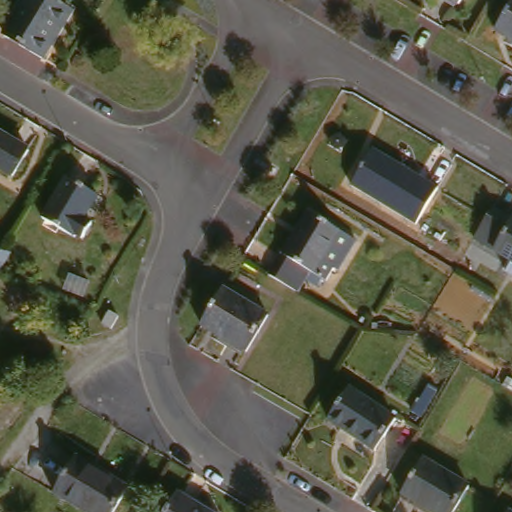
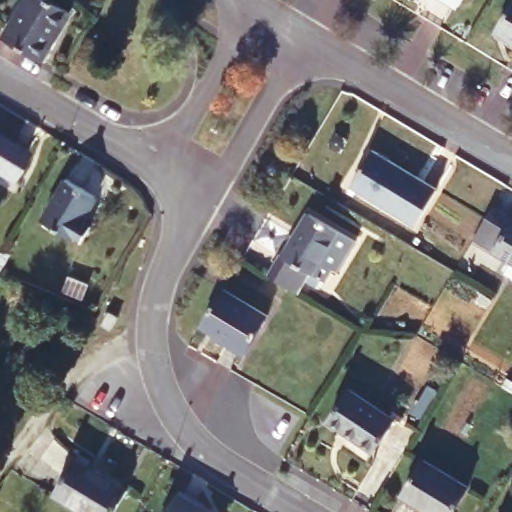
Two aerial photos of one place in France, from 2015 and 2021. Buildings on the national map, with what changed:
unchanged [(32,0),(37,0),(72,20),(45,68),(6,45),(32,0)]
unchanged [(455,7),(444,0),(459,0),(455,7)]
unchanged [(512,17),(512,46),(499,37),(507,25),(512,17)]
unchanged [(31,155),(16,180),(0,170),(0,137),(31,155)]
unchanged [(372,154),(438,191),(415,230),(349,191),(372,154)]
unchanged [(66,183),(97,204),(72,245),(39,222),(66,183)]
unchanged [(494,202),(512,213),(512,258),(475,236),(494,202)]
unchanged [(338,274),(333,271),(326,283),(319,280),(314,287),(302,280),(295,293),(294,292),(270,278),(268,277),(280,256),(282,258),(307,215),(338,234),(356,244),(338,274)]
unchanged [(512,261),(512,276),(505,272),(512,261)]
unchanged [(270,324),(250,360),(200,330),(221,294),(270,324)]
unchanged [(101,307),(112,315),(104,328),(92,321),(101,307)]
unchanged [(348,395),(395,425),(374,457),(328,429),(348,395)]
unchanged [(128,492),(117,512),(84,512),(55,494),(76,460),(128,492)]
unchanged [(471,492),(460,512),(422,512),(403,501),(426,465),(471,492)]
unchanged [(200,512),(167,512),(176,497),(200,512)]

